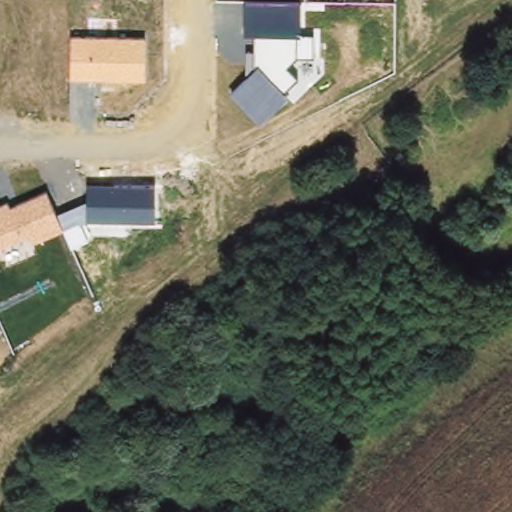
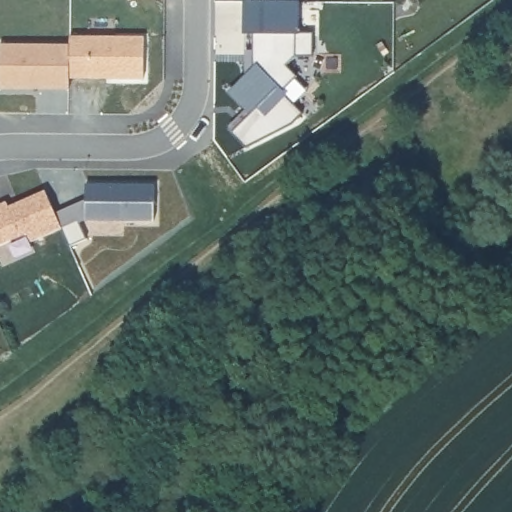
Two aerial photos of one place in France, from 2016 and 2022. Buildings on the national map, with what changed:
unchanged [(300,31),(317,30),(317,52),(298,53),(289,64),(299,74),(287,88),(293,96),(259,126),(229,92),(247,72),(248,45),(253,44),(253,31),(245,31),(245,0),(299,0),(300,31)]
unchanged [(146,35),(146,79),(71,79),(71,36),(146,35)]
new [(70,88),(1,88),(1,43),(71,44),(71,79),(70,88)]
unchanged [(86,221),(82,223),(90,238),(73,247),(61,228),(31,242),(26,236),(0,247),(0,204),(8,201),(11,206),(49,191),(56,211),(85,199),(86,180),(158,183),(156,221),(86,221)]

